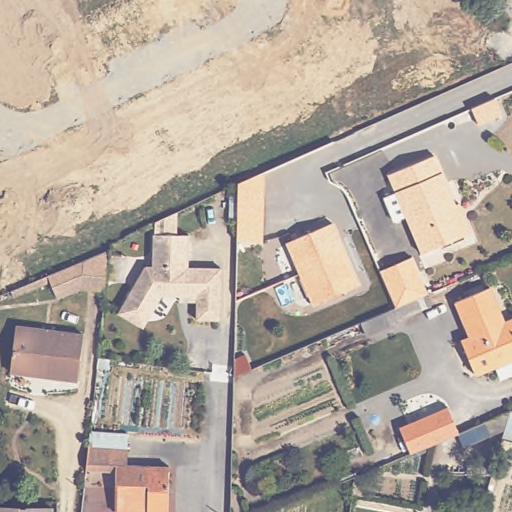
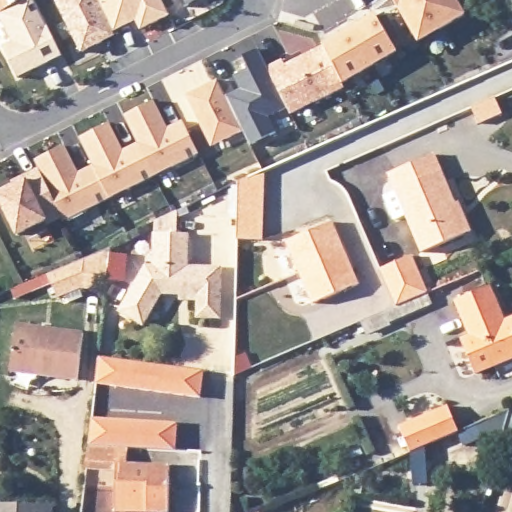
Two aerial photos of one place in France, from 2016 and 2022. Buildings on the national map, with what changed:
unchanged [(0,14),(0,0),(24,0),(0,14)]
new [(61,56),(16,79),(1,47),(11,43),(0,18),(0,14),(24,0),(31,0),(61,56)]
unchanged [(54,0),(96,0),(116,37),(80,55),(54,0)]
new [(141,30),(135,18),(114,30),(99,0),(163,0),(170,15),(141,30)]
new [(184,7),(180,0),(197,0),(184,7)]
new [(424,41),(404,7),(401,0),(461,0),(469,14),(424,41)]
new [(377,16),(398,51),(371,67),(350,32),(377,16)]
new [(350,32),(371,67),(344,84),(325,47),(350,32)]
new [(284,60),(286,66),(325,47),(344,84),(346,88),(292,115),(269,68),(284,60)]
new [(219,81),(244,131),(228,140),(224,134),(210,141),(188,96),(219,81)]
new [(34,160),(64,145),(79,172),(92,165),(79,138),(110,123),(123,150),(135,143),(123,116),(154,101),(169,128),(183,121),(200,155),(127,192),(134,205),(116,214),(109,201),(65,223),(64,220),(39,170),(34,160)]
unchanged [(472,232),(462,236),(422,254),(406,216),(394,221),(384,197),(396,192),(388,175),(434,155),(455,204),(459,203),(472,232)]
unchanged [(44,230),(43,226),(16,238),(0,204),(0,193),(17,185),(14,182),(39,170),(64,220),(44,230)]
unchanged [(237,240),(238,202),(238,183),(264,172),(262,241),(237,240)]
unchanged [(179,295),(161,294),(146,320),(136,322),(118,311),(145,265),(153,265),(154,233),(154,222),(168,215),(168,233),(189,234),(188,266),(221,267),(220,319),(197,318),(197,300),(179,300),(179,295)]
unchanged [(299,274),(287,242),(333,223),(346,254),(359,285),(313,304),(299,274)]
unchanged [(114,244),(110,286),(85,284),(62,293),(55,276),(19,291),(16,285),(53,270),(114,244)]
unchanged [(114,255),(129,256),(126,282),(110,281),(114,255)]
unchanged [(379,271),(412,257),(427,294),(421,296),(426,307),(404,317),(389,323),(366,333),(361,322),(384,312),(395,307),(379,271)]
unchanged [(476,375),(461,341),(470,337),(456,302),(489,288),(504,323),(512,319),(512,360),(476,375)]
unchanged [(10,372),(15,326),(83,334),(78,380),(41,376),(34,375),(10,372)]
unchanged [(245,354),(252,369),(234,376),(234,358),(245,354)]
new [(98,357),(204,371),(200,398),(95,383),(98,357)]
unchanged [(447,406),(459,432),(410,453),(399,427),(447,406)]
unchanged [(509,411),(512,410),(512,441),(502,439),(504,430),(489,435),(489,433),(473,439),(469,428),(484,422),(509,411)]
unchanged [(85,466),(88,443),(89,428),(126,429),(126,444),(126,460),(169,461),(168,508),(114,507),(115,466),(85,466)]
unchanged [(494,465),(492,475),(467,474),(467,464),(494,465)]
unchanged [(363,485),(361,496),(352,495),(354,484),(363,485)]
unchanged [(52,512),(0,512),(0,507),(52,509),(52,512)]

